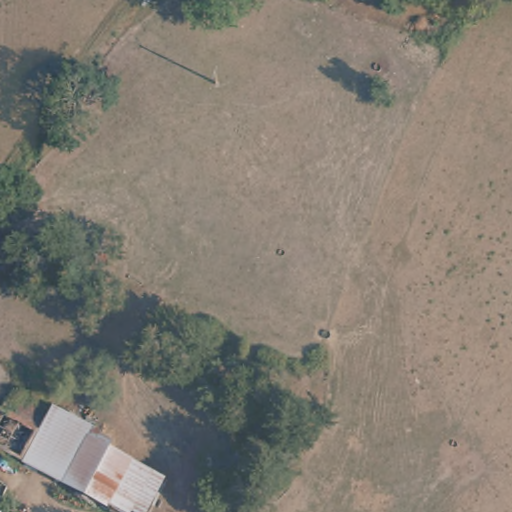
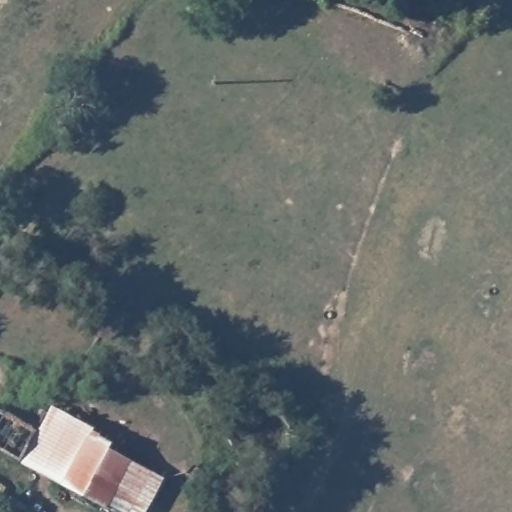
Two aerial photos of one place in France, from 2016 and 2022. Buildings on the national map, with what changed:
unchanged [(6,408),(0,418),(0,404),(6,408)]
unchanged [(38,426),(42,423),(59,432),(38,467),(26,460),(0,445),(0,418),(6,408),(38,426)]
unchanged [(92,440),(69,485),(38,467),(59,432),(64,423),(92,440)]
unchanged [(133,462),(109,507),(69,485),(92,440),(133,462)]
unchanged [(117,512),(109,507),(133,462),(170,483),(153,512),(117,512)]
unchanged [(10,463),(22,468),(14,484),(20,488),(5,512),(4,512),(0,509),(0,483),(10,463)]

